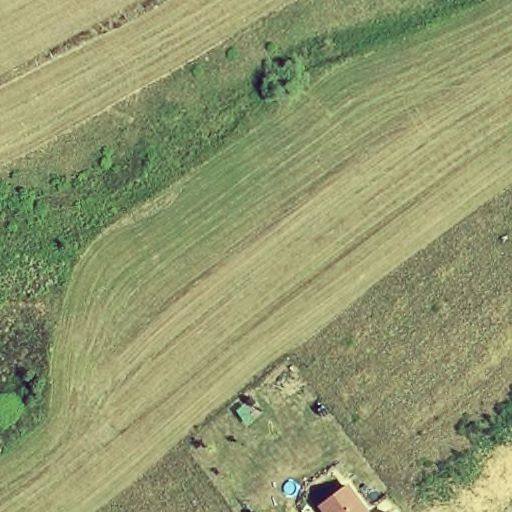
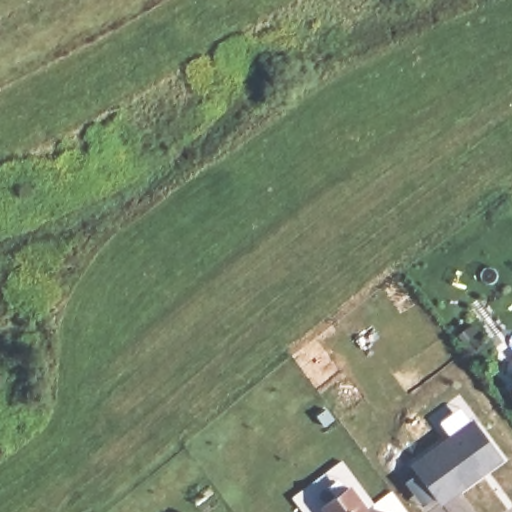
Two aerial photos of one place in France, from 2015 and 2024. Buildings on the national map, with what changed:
new [(509,394),(512,374),(512,394),(509,394)]
new [(472,418),(504,461),(441,506),(410,465),(472,418)]
unchanged [(366,512),(325,512),(322,507),(348,487),(366,512)]

